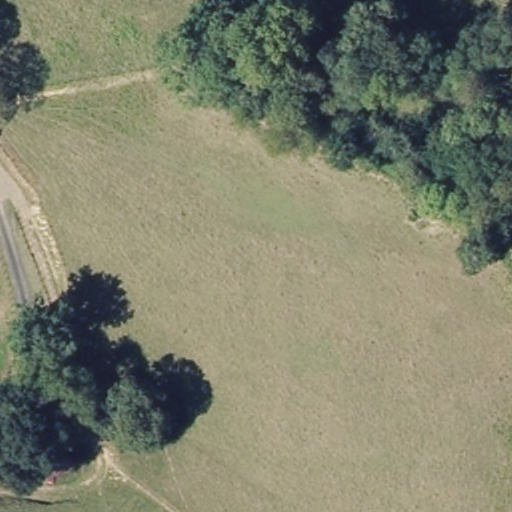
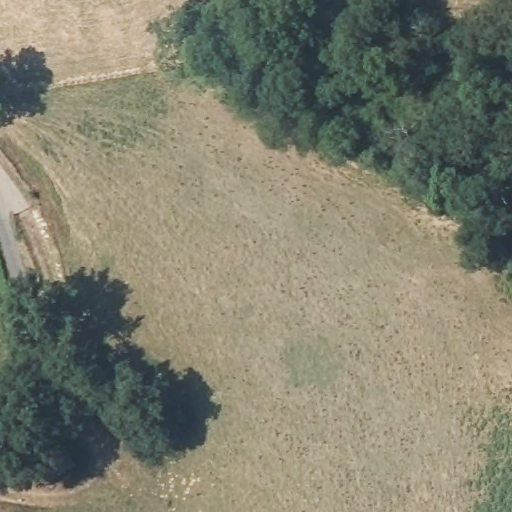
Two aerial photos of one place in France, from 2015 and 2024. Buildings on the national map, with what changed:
unchanged [(45,492),(25,468),(59,448),(77,471),(45,492)]

